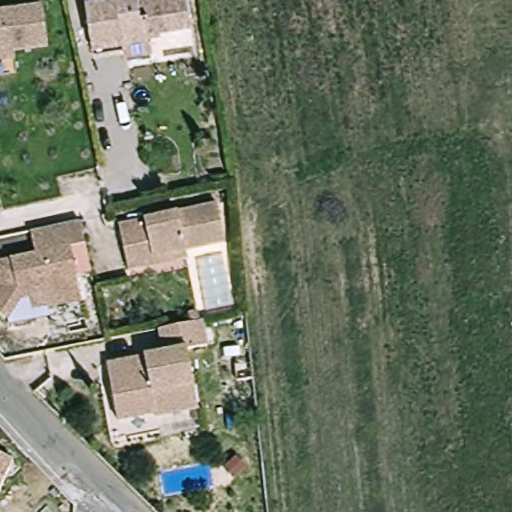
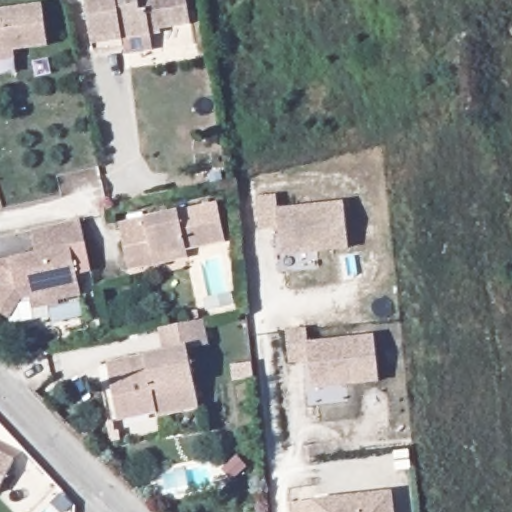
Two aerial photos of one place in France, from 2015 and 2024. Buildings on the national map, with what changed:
unchanged [(128,46),(98,51),(90,0),(191,0),(195,24),(155,30),(155,35),(153,35),(155,50),(130,54),(128,46)]
unchanged [(53,50),(18,55),(19,62),(0,65),(0,16),(46,10),(53,50)]
new [(276,195),(277,209),(344,202),(348,246),(281,253),(278,225),(259,227),(255,197),(276,195)]
unchanged [(225,241),(186,249),(187,257),(128,269),(118,224),(217,204),(225,241)]
unchanged [(25,299),(13,318),(0,310),(0,291),(4,285),(0,266),(0,261),(40,253),(35,230),(84,220),(89,244),(75,247),(85,293),(86,301),(53,308),(53,306),(38,309),(35,297),(25,299)]
unchanged [(206,320),(211,345),(192,349),(203,408),(161,416),(161,413),(123,420),(111,364),(169,352),(165,329),(206,320)]
new [(306,329),(307,342),(374,335),(378,379),(311,387),(308,359),(289,361),(286,331),(306,329)]
unchanged [(0,488),(0,453),(13,460),(0,488)]
new [(341,499),(394,491),(397,512),(295,512),(294,506),(316,503),(341,499)]

